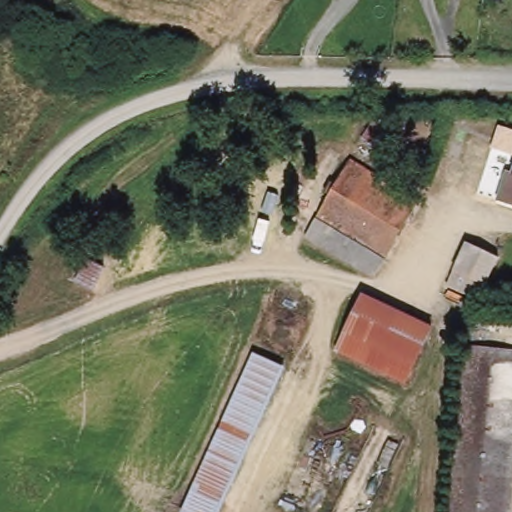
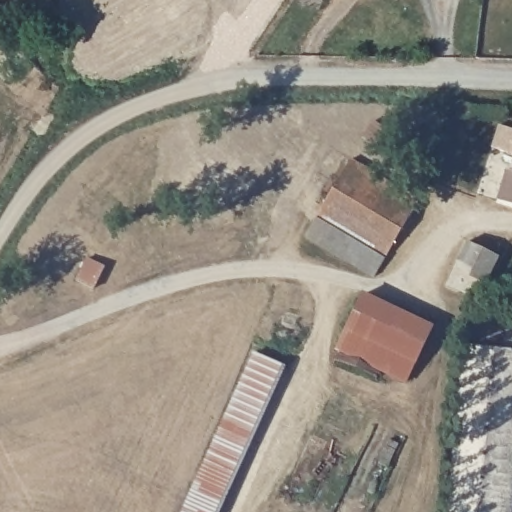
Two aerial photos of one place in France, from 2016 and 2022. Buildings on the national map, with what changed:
unchanged [(355,159),(394,179),(400,185),(420,197),(385,258),(319,219),(355,159)]
unchanged [(512,199),(500,195),(508,166),(512,167),(512,199)]
unchanged [(319,219),(385,258),(375,277),(307,237),(319,219)]
unchanged [(500,258),(490,281),(480,302),(451,286),(468,243),(500,258)]
unchanged [(433,329),(407,384),(338,352),(365,295),(433,329)]
unchanged [(512,335),(512,336),(512,512),(457,512),(472,344),(511,347),(512,335)]
unchanged [(220,512),(187,512),(259,355),(287,367),(220,512)]

